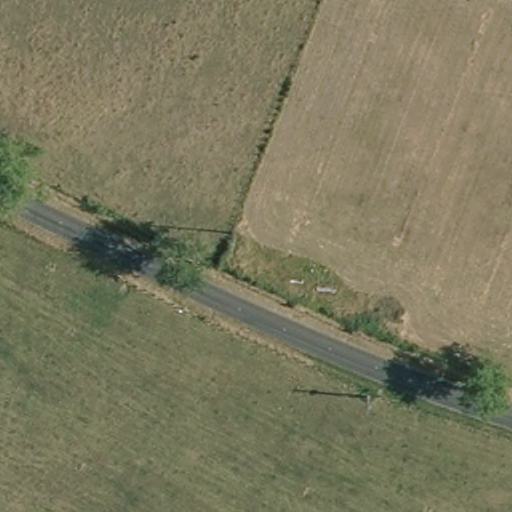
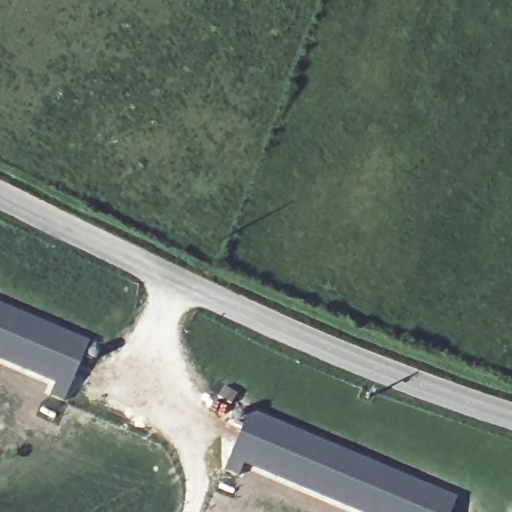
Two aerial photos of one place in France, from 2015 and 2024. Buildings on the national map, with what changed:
new [(60,402),(45,396),(51,382),(0,361),(0,309),(85,345),(60,402)]
new [(246,408),(455,493),(447,512),(336,512),(238,472),(232,485),(217,479),(246,408)]

